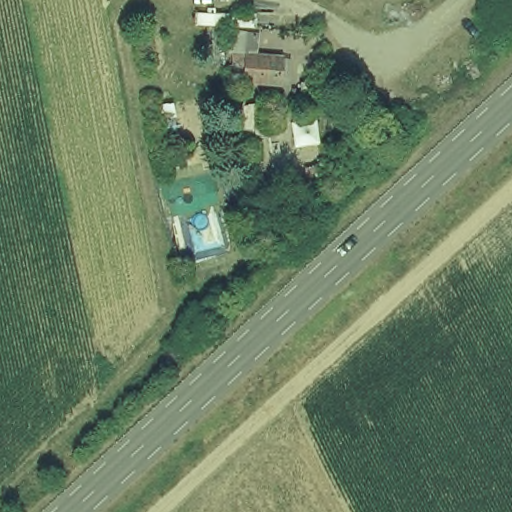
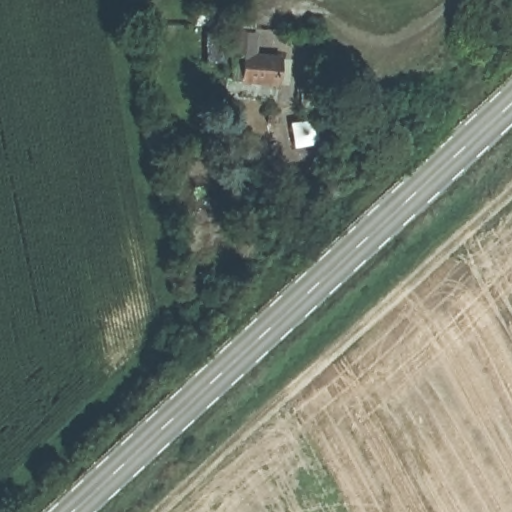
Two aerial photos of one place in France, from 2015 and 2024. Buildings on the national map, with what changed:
unchanged [(258,33),(201,34),(198,16),(257,16),(258,33)]
unchanged [(284,52),(281,85),(246,83),(246,53),(284,52)]
unchanged [(266,153),(248,154),(242,108),(264,106),(266,153)]
unchanged [(325,151),(296,156),(293,125),(322,120),(325,151)]

